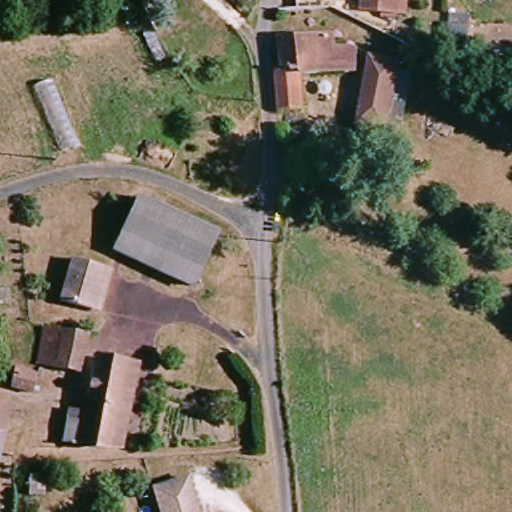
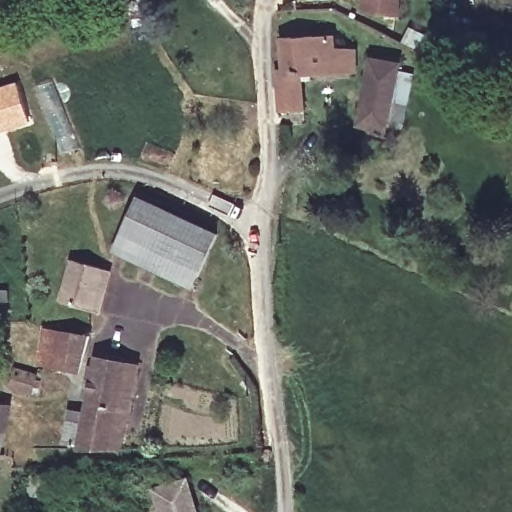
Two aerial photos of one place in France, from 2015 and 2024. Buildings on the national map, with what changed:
unchanged [(363,16),(364,0),(396,0),(396,16),(363,16)]
unchanged [(325,39),(326,51),(346,54),(345,81),(305,78),(301,117),(275,118),(276,103),(278,72),(285,73),(285,43),(325,39)]
unchanged [(400,70),(387,128),(361,123),(374,64),(400,70)]
new [(17,81),(30,124),(0,133),(0,86),(17,81)]
unchanged [(110,257),(136,198),(220,238),(195,294),(110,257)]
unchanged [(71,268),(103,273),(94,317),(63,310),(71,268)]
unchanged [(44,371),(51,334),(92,339),(90,351),(86,377),(44,371)]
unchanged [(107,355),(128,364),(122,388),(108,447),(75,447),(100,351),(107,355)]
unchanged [(20,367),(44,371),(40,396),(16,391),(20,367)]
unchanged [(0,467),(0,404),(11,405),(7,452),(5,467),(0,467)]
unchanged [(26,487),(27,469),(43,470),(42,489),(26,487)]
unchanged [(161,493),(196,483),(204,512),(167,512),(161,493)]

